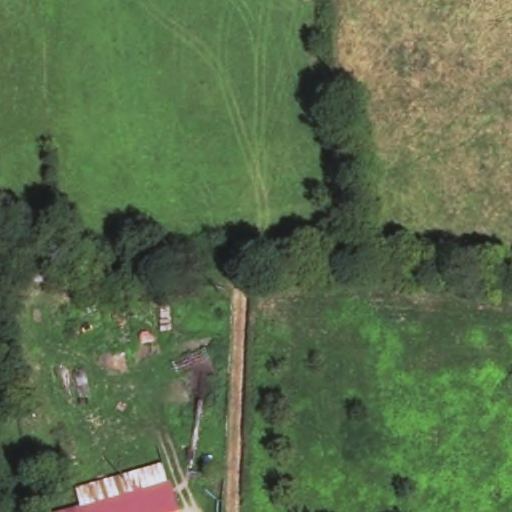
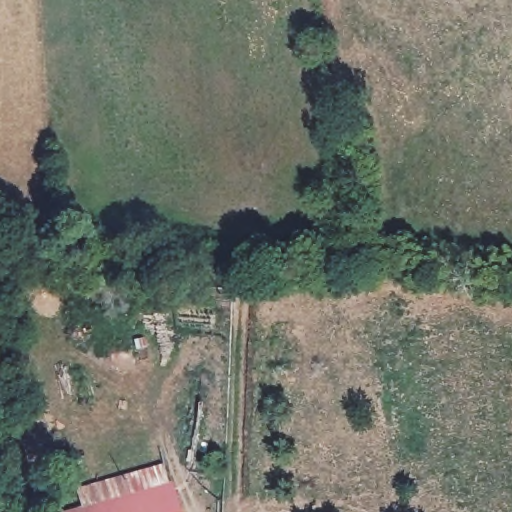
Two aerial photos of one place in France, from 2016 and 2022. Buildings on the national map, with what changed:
unchanged [(172,479),(181,512),(54,512),(172,479)]

